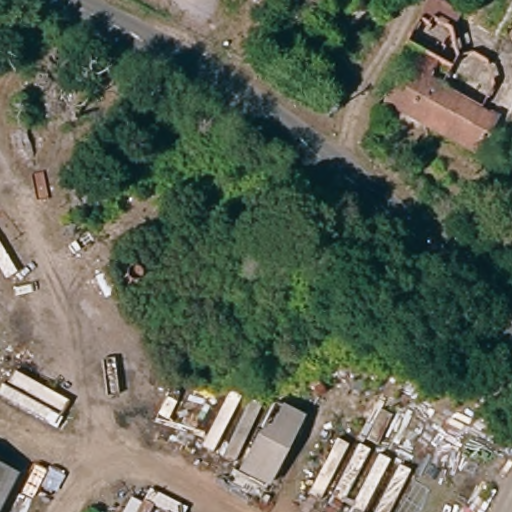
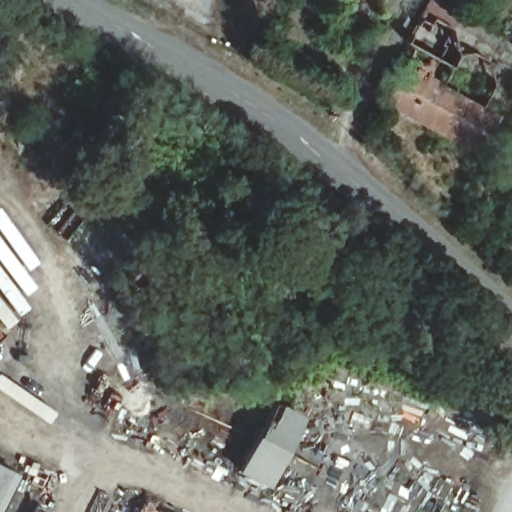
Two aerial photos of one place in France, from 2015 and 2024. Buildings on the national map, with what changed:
unchanged [(492,116),(471,154),(433,133),(380,103),(382,101),(385,96),(384,96),(368,90),(381,73),(384,75),(391,64),(400,70),(412,47),(403,42),(424,0),(428,0),(453,15),(443,29),(451,61),(467,55),(480,61),(486,86),(485,88),(473,106),(492,116)]
unchanged [(163,369),(175,345),(220,367),(209,391),(163,369)]
unchanged [(268,489),(237,473),(274,401),(306,417),(268,489)]
unchanged [(20,476),(1,512),(0,512),(0,465),(20,476)]

